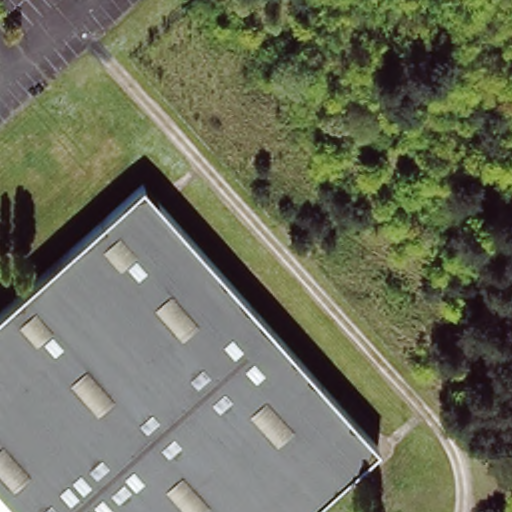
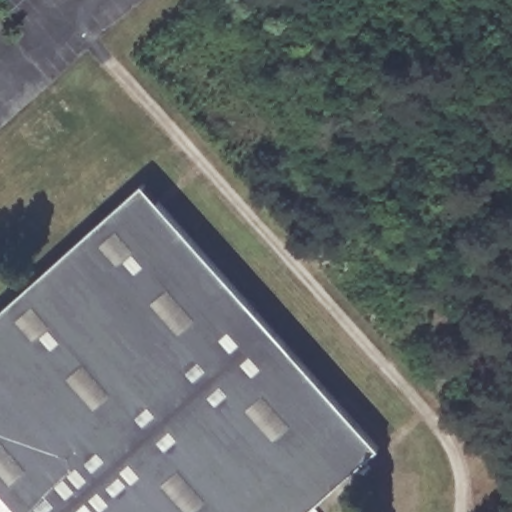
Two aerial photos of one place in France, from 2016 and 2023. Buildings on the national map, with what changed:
unchanged [(378,445),(302,512),(0,512),(0,309),(145,185),(378,445)]

